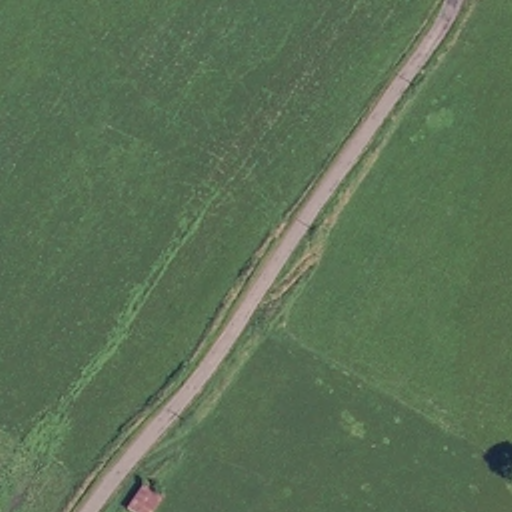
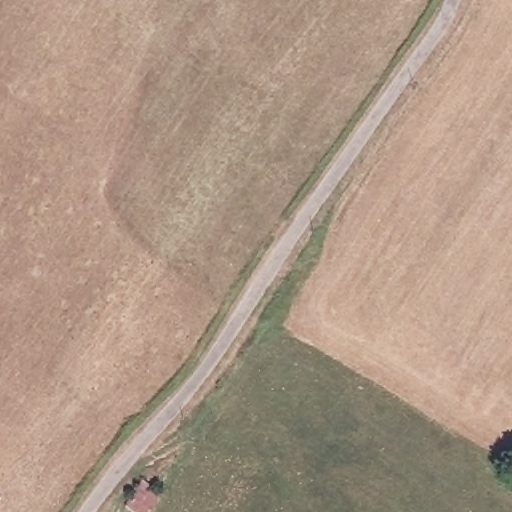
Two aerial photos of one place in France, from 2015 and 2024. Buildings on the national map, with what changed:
unchanged [(155,512),(127,512),(147,477),(167,491),(155,512)]

